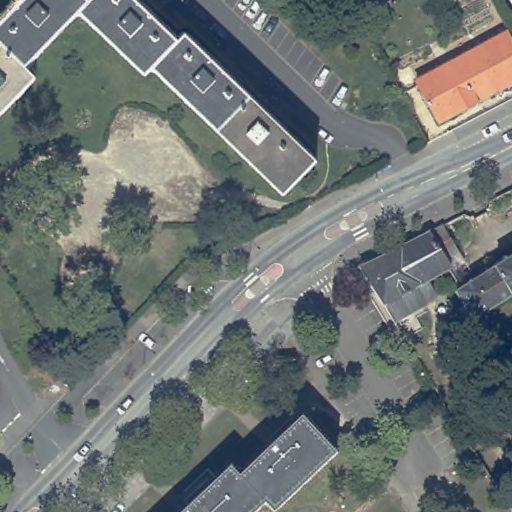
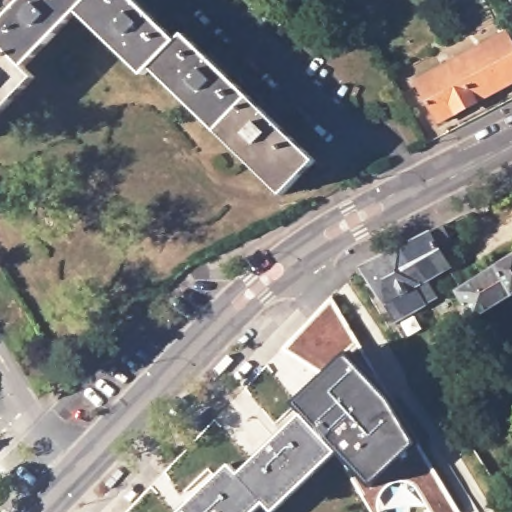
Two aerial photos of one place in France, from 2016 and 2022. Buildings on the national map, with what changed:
unchanged [(188,35),(319,160),(286,195),(155,69),(147,76),(81,12),(28,66),(37,75),(0,112),(0,46),(4,42),(0,38),(0,28),(28,0),(92,0),(93,1),(94,0),(139,0),(182,41),(188,35)]
unchanged [(506,33),(508,32),(512,40),(512,83),(439,122),(416,80),(506,33)]
unchanged [(364,268),(434,231),(449,225),(464,252),(450,260),(454,268),(420,288),(430,305),(400,323),(389,305),(364,268)]
unchanged [(461,288),(512,257),(512,295),(474,318),(457,290),(461,288)]
new [(337,455),(341,450),(373,486),(417,444),(391,401),(346,354),(324,375),(281,349),(331,296),(460,512),(429,512),(423,502),(414,488),(406,482),(397,482),(388,486),(380,496),(379,510),(380,512),(371,512),(337,455)]
new [(373,486),(341,450),(307,413),(296,402),(324,375),(346,354),(391,401),(417,444),(373,486)]
unchanged [(235,463),(244,471),(307,413),(341,450),(278,509),(269,499),(255,512),(183,512),(235,463)]

